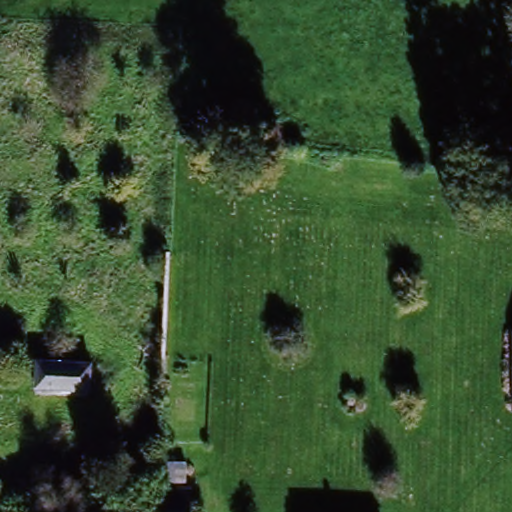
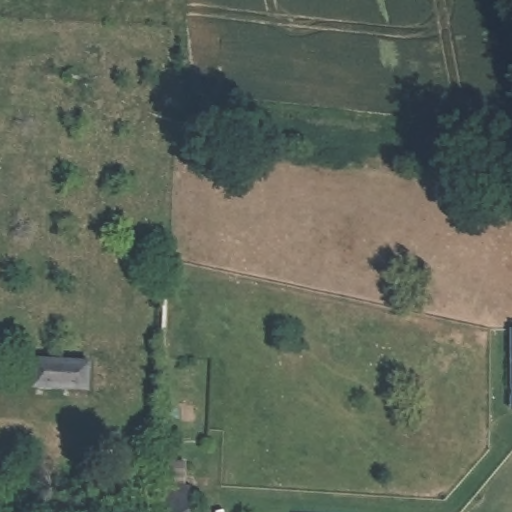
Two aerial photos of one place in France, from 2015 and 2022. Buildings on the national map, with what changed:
unchanged [(40,388),(41,368),(85,371),(85,390),(40,388)]
unchanged [(194,488),(192,512),(159,512),(162,471),(162,460),(172,460),(188,461),(187,473),(187,488),(194,488)]

